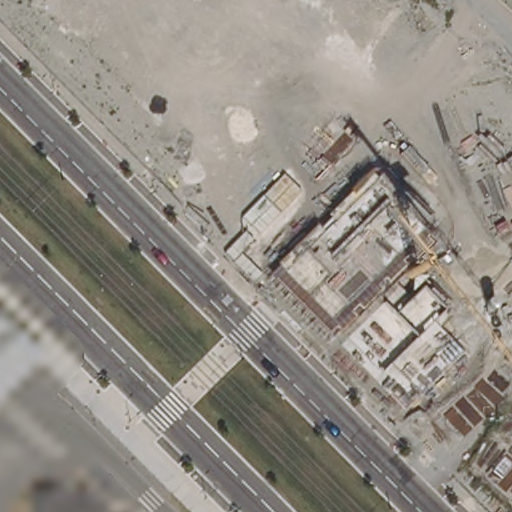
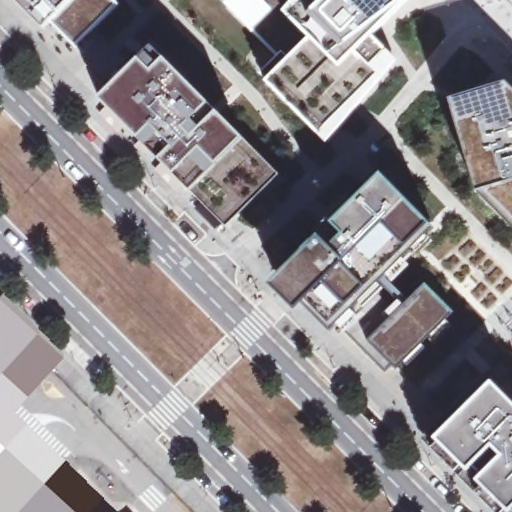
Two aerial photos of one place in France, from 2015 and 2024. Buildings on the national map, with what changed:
new [(52,24),(45,30),(15,0),(28,0),(37,10),(47,1),(61,15),(52,24)]
new [(37,10),(28,0),(76,0),(61,15),(47,1),(37,10)]
new [(61,15),(76,0),(115,0),(119,5),(76,48),(52,24),(61,15)]
new [(226,0),(409,0),(372,35),(398,61),(328,142),(267,81),(284,62),(223,3),(226,0)]
new [(176,175),(161,161),(147,146),(140,140),(100,100),(140,60),(146,54),(155,47),(164,59),(208,105),(217,116),(242,140),(217,165),(208,175),(192,191),(176,175)]
new [(506,83),(512,89),(512,182),(477,191),(450,100),(506,83)]
demolished [(51,99),(60,89),(68,98),(59,107),(51,99)]
new [(279,175),(226,227),(192,191),(208,175),(217,165),(242,140),(279,175)]
new [(305,303),(296,310),(271,284),(318,237),(331,225),(381,176),(429,225),(435,227),(383,280),(338,323),(330,331),(305,303)]
new [(477,191),(512,182),(512,227),(477,191)]
new [(451,312),(396,367),(393,363),(371,340),(391,318),(385,312),(392,305),(375,286),(383,280),(400,299),(406,305),(424,285),(451,312)]
new [(392,305),(385,312),(391,318),(371,340),(393,363),(384,372),(338,323),(375,286),(392,305)]
unchanged [(2,307),(45,350),(0,394),(0,305),(2,307)]
new [(507,512),(475,480),(481,475),(473,467),(468,472),(434,439),(492,381),(512,402),(512,510),(510,512),(507,512)]
unchanged [(40,499),(42,489),(48,484),(55,480),(65,481),(79,488),(84,488),(92,484),(122,512),(49,512),(43,505),(40,499)]
new [(510,512),(512,510),(512,512),(510,512)]

